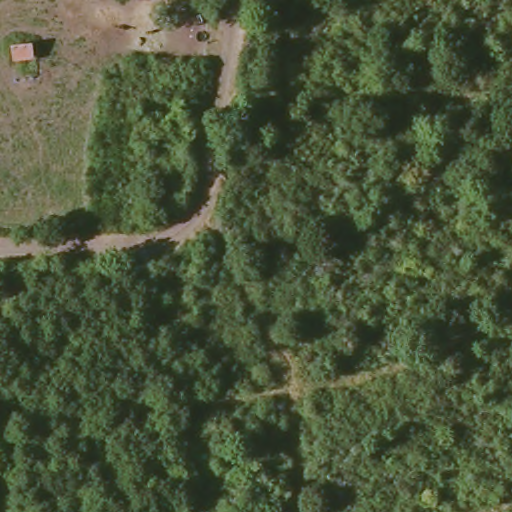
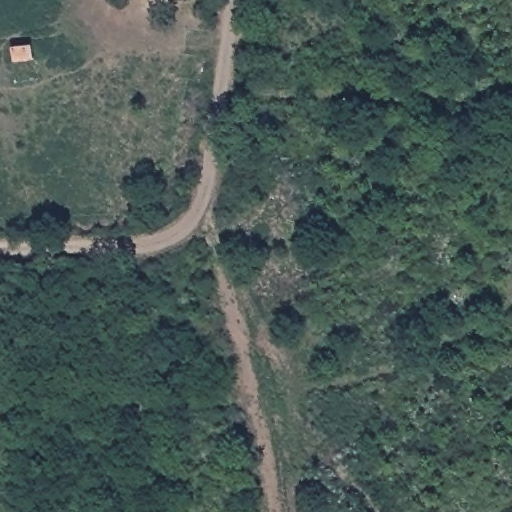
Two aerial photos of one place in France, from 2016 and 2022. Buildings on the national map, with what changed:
unchanged [(35,38),(36,56),(11,62),(8,43),(35,38)]

